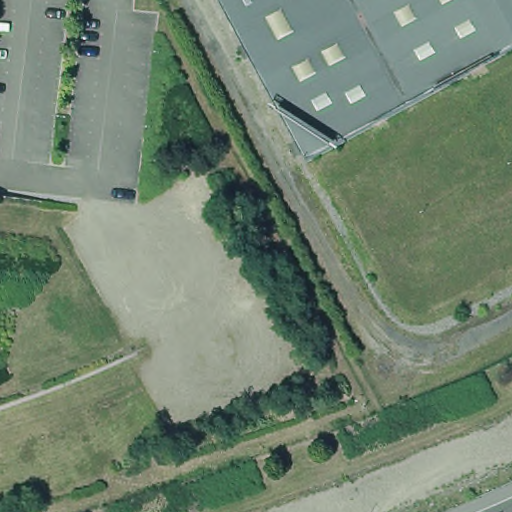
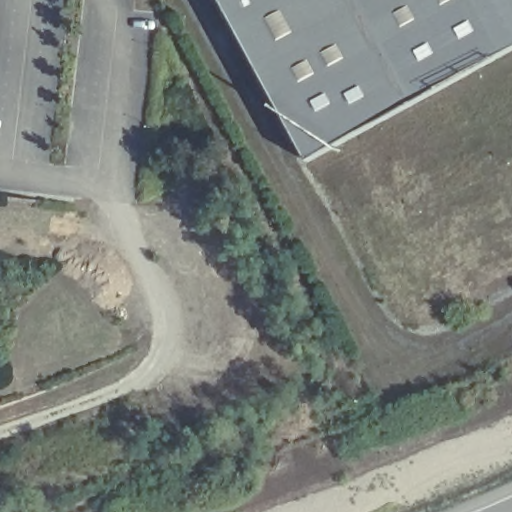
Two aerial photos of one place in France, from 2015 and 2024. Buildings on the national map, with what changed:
unchanged [(512,49),(310,167),(214,0),(512,0),(512,49)]
unchanged [(57,206),(53,224),(0,220),(0,199),(57,206)]
unchanged [(0,400),(0,380),(14,376),(22,392),(0,400)]

